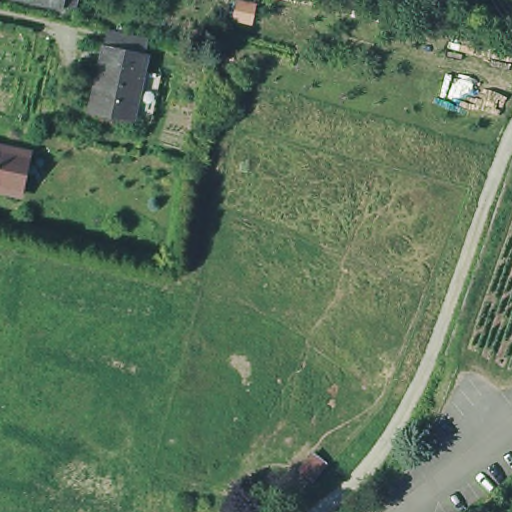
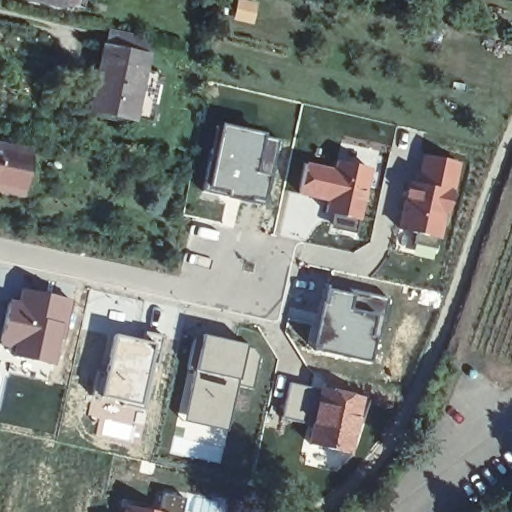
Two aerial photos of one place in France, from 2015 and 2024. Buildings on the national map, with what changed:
unchanged [(66,3),(66,5),(38,0),(79,0),(78,6),(66,3)]
new [(232,19),(237,0),(244,0),(257,3),(253,24),(232,19)]
unchanged [(146,118),(129,114),(128,118),(87,109),(100,46),(103,29),(144,37),(141,55),(142,55),(139,71),(156,75),(146,118)]
new [(247,194),(246,202),(204,194),(217,127),(278,140),(265,198),(247,194)]
unchanged [(10,149),(11,146),(29,150),(29,153),(32,154),(23,193),(0,188),(0,147),(10,149)]
new [(460,162),(442,244),(398,234),(407,177),(418,179),(424,155),(460,162)]
new [(342,215),(326,211),(328,199),(300,193),(306,164),(337,171),(338,161),(372,170),(360,235),(339,231),(342,215)]
new [(356,359),(315,351),(329,285),(387,298),(378,338),(361,335),(356,359)]
new [(8,298),(16,299),(19,287),(68,298),(60,337),(51,364),(0,349),(0,341),(8,298)]
new [(111,333),(152,340),(153,335),(160,337),(142,407),(97,397),(111,333)]
new [(228,424),(195,418),(199,393),(190,391),(195,370),(188,369),(195,339),(234,348),(235,345),(253,348),(259,357),(252,390),(236,386),(228,424)]
new [(288,382),(317,387),(309,424),(281,417),(288,382)]
new [(309,424),(317,387),(365,397),(352,454),(305,443),(309,424)]
new [(220,467),(169,458),(172,439),(222,448),(220,467)]
new [(164,494),(185,499),(181,512),(161,512),(164,494)]
new [(127,509),(122,508),(123,499),(150,505),(148,511),(153,512),(126,512),(127,509)]

